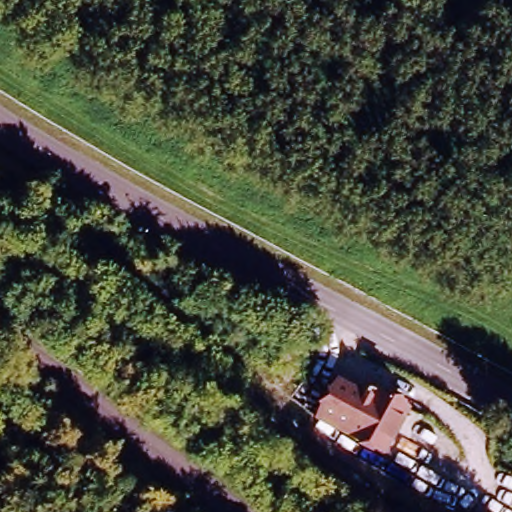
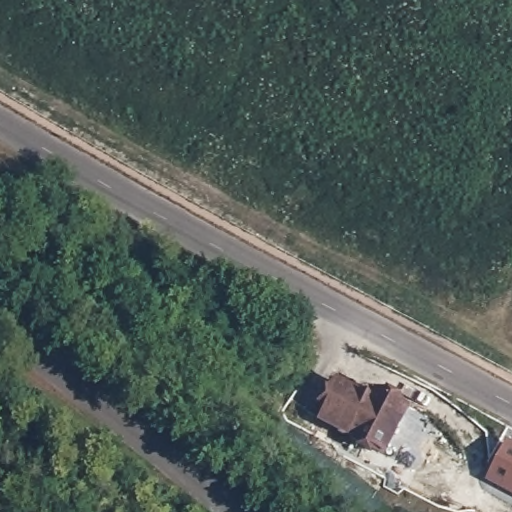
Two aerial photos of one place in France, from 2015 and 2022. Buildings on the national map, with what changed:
unchanged [(362,392),(367,386),(409,405),(385,460),(309,420),(330,379),(362,392)]
new [(512,444),(512,496),(485,481),(507,441),(512,444)]

